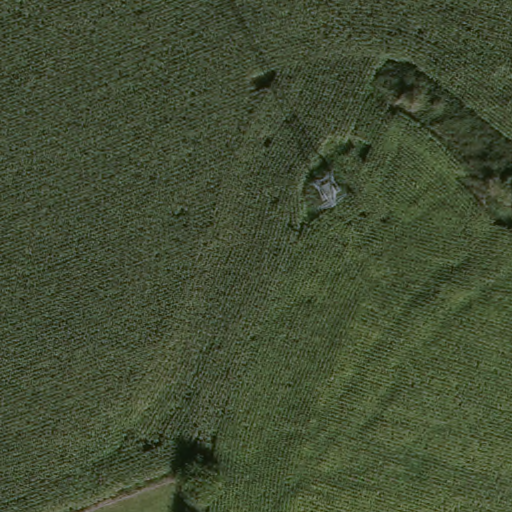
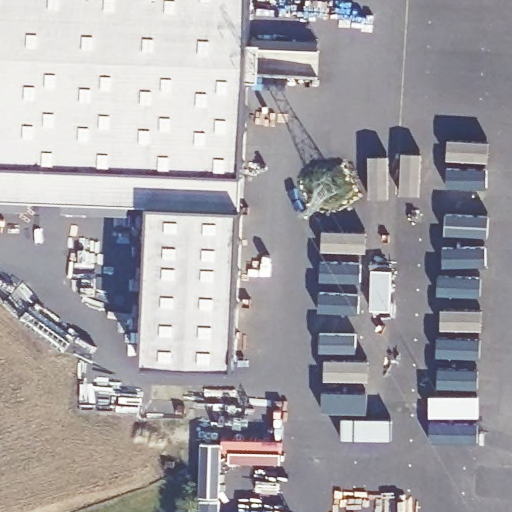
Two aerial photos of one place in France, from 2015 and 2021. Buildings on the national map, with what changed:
new [(235,365),(144,362),(151,201),(0,194),(0,0),(251,0),(242,206),(235,365)]

